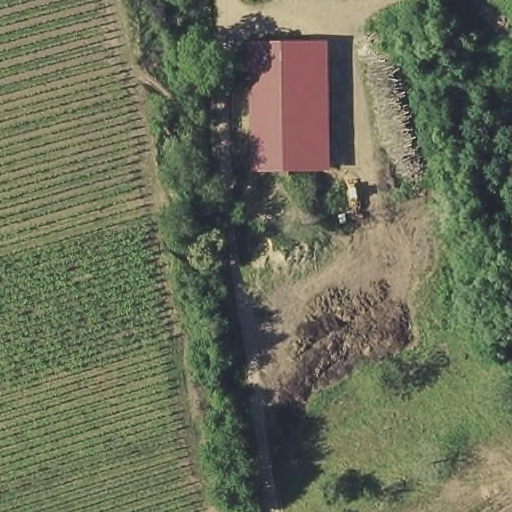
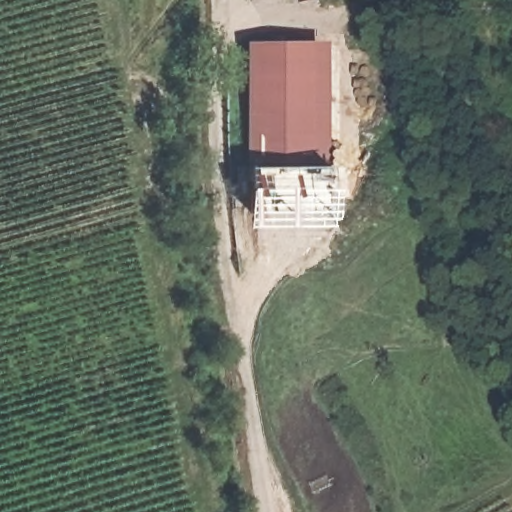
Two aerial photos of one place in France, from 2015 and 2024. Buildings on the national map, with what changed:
unchanged [(248,46),(308,45),(310,166),(250,167),(248,46)]

